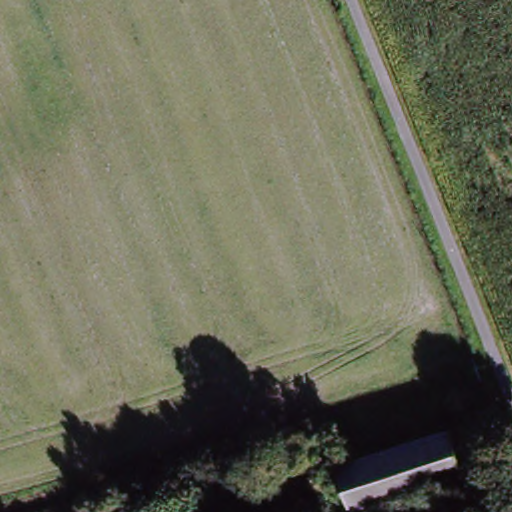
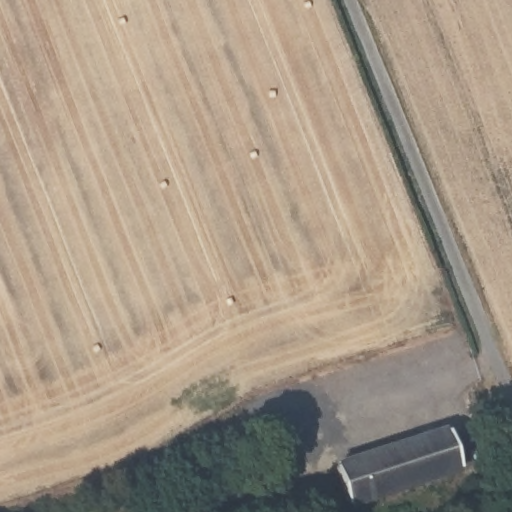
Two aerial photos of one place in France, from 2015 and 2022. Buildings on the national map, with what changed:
unchanged [(465,473),(348,510),(331,460),(450,422),(465,473)]

